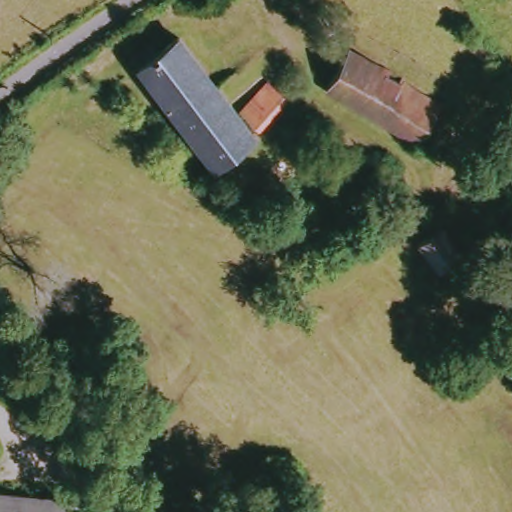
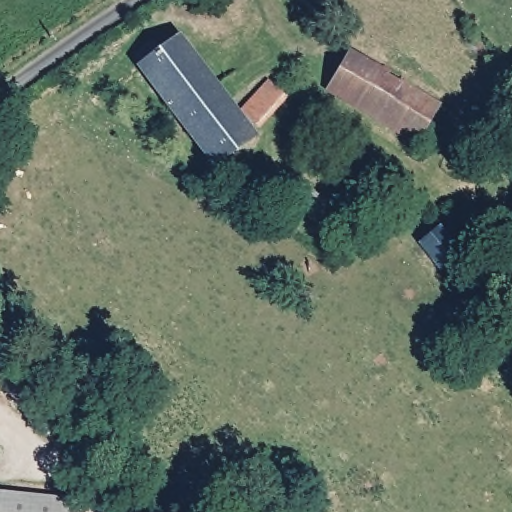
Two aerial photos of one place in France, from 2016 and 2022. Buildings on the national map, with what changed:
unchanged [(162,49),(169,57),(187,42),(264,141),(226,171),(148,72),(150,70),(144,62),(162,49)]
unchanged [(329,87),(354,51),(446,106),(420,144),(329,87)]
unchanged [(266,129),(251,115),(278,85),(293,99),(266,129)]
unchanged [(438,270),(417,242),(439,225),(460,252),(438,270)]
unchanged [(80,504),(79,512),(0,512),(0,496),(80,504)]

